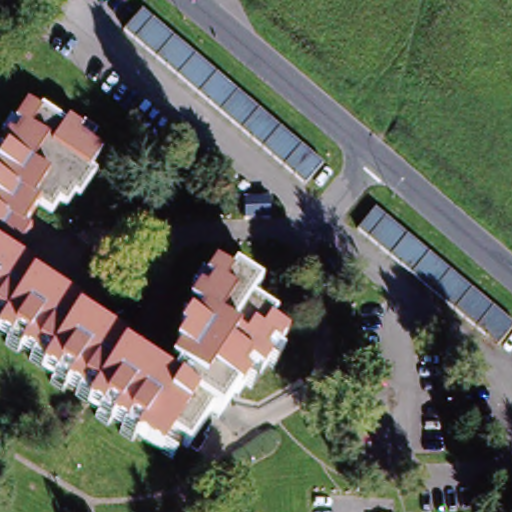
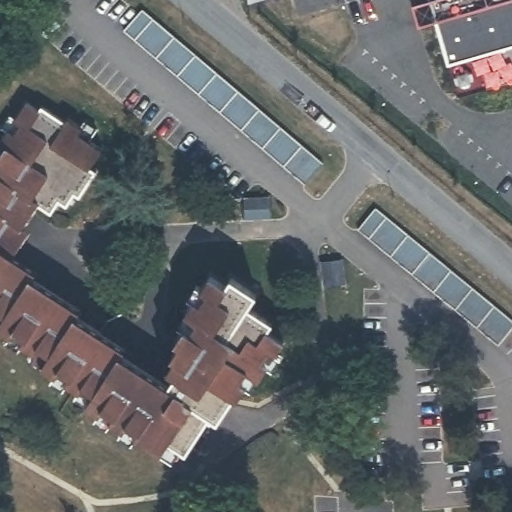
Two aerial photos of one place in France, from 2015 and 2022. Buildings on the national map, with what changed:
new [(421,30),(414,7),(432,2),(431,0),(512,0),(512,48),(448,66),(437,24),(421,30)]
unchanged [(305,189),(124,36),(142,15),(323,167),(305,189)]
unchanged [(214,415),(189,452),(172,441),(165,452),(92,405),(96,399),(46,367),(51,360),(2,328),(6,322),(0,318),(0,148),(21,113),(34,121),(36,117),(61,131),(63,127),(76,135),(73,142),(97,156),(87,175),(93,179),(78,204),(73,202),(65,214),(58,210),(50,222),(35,213),(5,262),(36,282),(33,288),(83,318),(80,326),(130,354),(126,362),(176,392),(183,381),(181,379),(188,367),(178,361),(186,349),(181,347),(189,332),(195,336),(202,325),(190,317),(198,303),(204,307),(211,296),(205,292),(213,278),(228,288),(234,280),(259,295),(251,307),(275,322),(271,329),(288,340),(263,377),(257,373),(241,397),(236,395),(220,420),(214,415)]
unchanged [(357,235),(374,213),(512,326),(512,332),(497,350),(357,235)]

